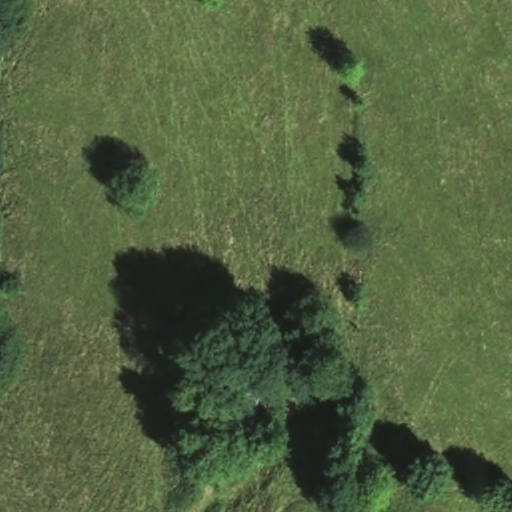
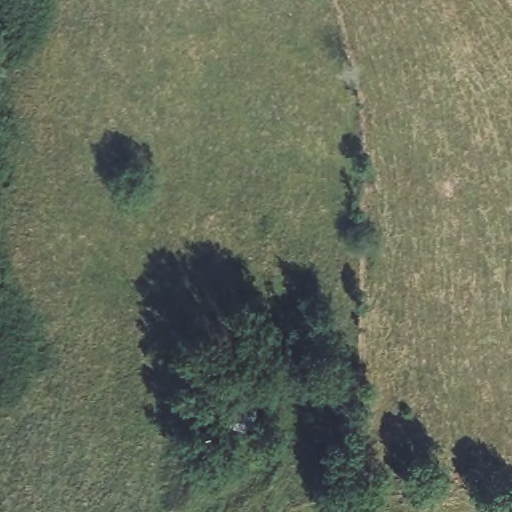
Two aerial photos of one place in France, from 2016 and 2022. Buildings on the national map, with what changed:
unchanged [(270,383),(261,439),(227,435),(236,377),(270,383)]

